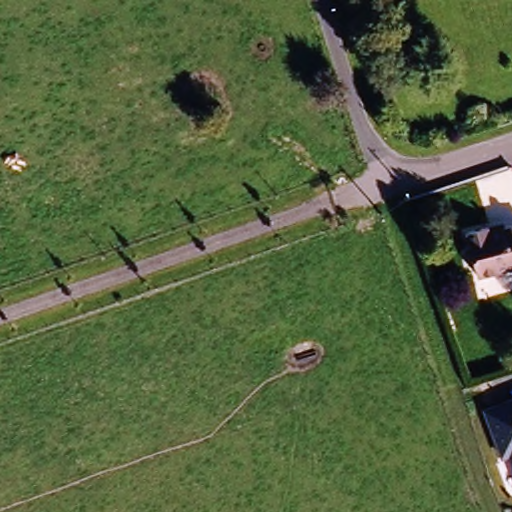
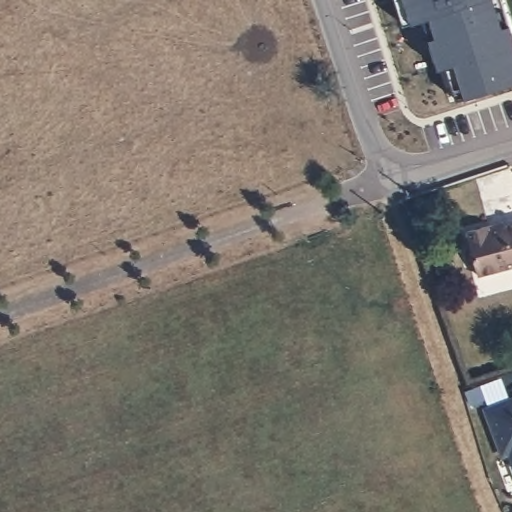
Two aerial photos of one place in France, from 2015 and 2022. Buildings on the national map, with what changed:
new [(437,35),(431,16),(412,21),(404,25),(397,3),(396,0),(405,0),(503,0),(505,9),(510,24),(512,29),(512,83),(457,100),(450,102),(439,68),(430,38),(437,35)]
new [(431,16),(437,35),(430,38),(423,18),(431,16)]
unchanged [(476,266),(470,265),(465,251),(470,245),(465,232),(486,224),(501,219),(502,224),(512,221),(512,264),(480,275),(476,266)]
unchanged [(498,460),(487,410),(512,402),(512,463),(510,457),(498,460)]

